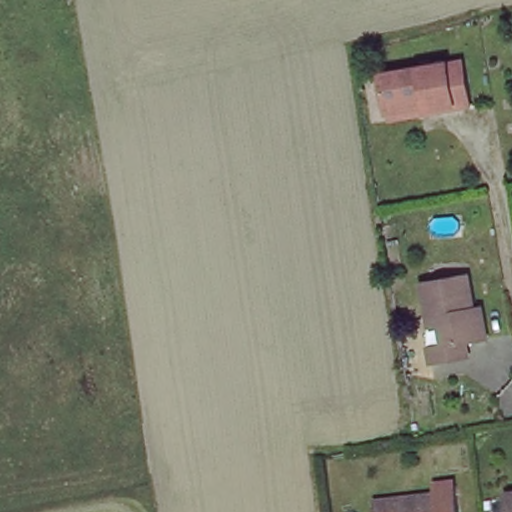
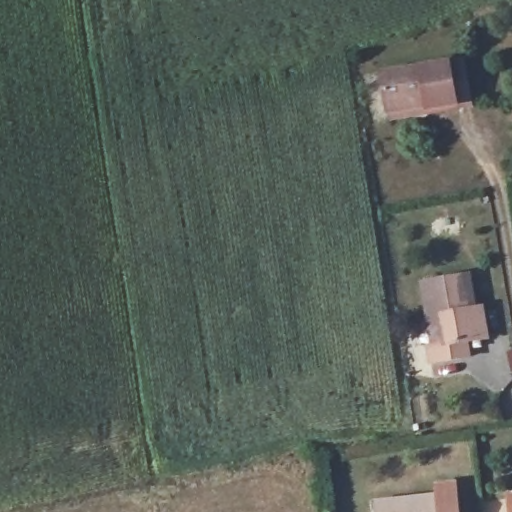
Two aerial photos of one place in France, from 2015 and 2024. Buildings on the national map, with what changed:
unchanged [(429,102),(430,105),(462,100),(454,62),(472,59),(479,105),(393,121),(391,108),(429,102)]
unchanged [(385,74),(454,62),(462,100),(430,105),(429,102),(391,108),(385,74)]
unchanged [(468,275),(474,303),(485,302),(492,335),(472,339),(474,352),(435,360),(431,343),(442,341),(436,311),(429,312),(423,282),(468,275)]
unchanged [(447,490),(453,505),(466,503),(468,512),(376,512),(374,502),(447,490)]

